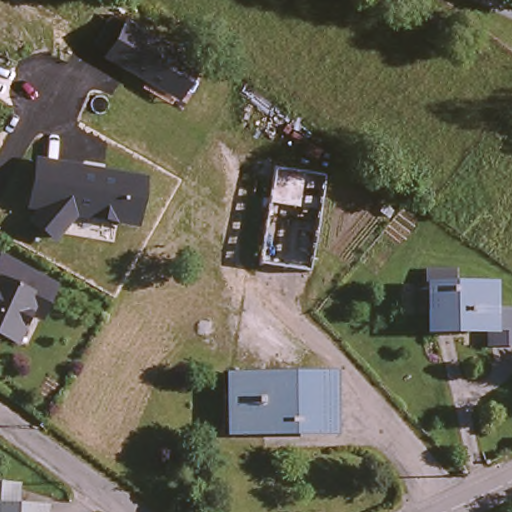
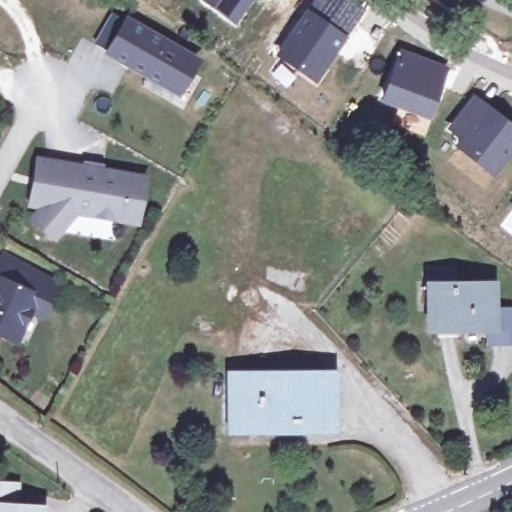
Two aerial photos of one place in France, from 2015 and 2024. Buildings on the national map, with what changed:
new [(236,26),(200,0),(253,0),(236,26)]
new [(310,0),(350,0),(364,9),(346,35),(306,6),(310,0)]
new [(306,6),(346,35),(313,81),(275,55),(306,6)]
unchanged [(115,17),(185,58),(167,89),(97,48),(115,17)]
new [(399,47),(450,66),(430,120),(379,102),(399,47)]
new [(512,123),(512,150),(493,178),(453,145),(456,141),(445,131),(473,93),(512,123)]
unchanged [(41,156),(144,175),(137,218),(78,207),(55,232),(35,214),(46,202),(34,199),(41,156)]
demolished [(282,159),(331,171),(308,269),(261,259),(282,159)]
new [(510,212),(512,208),(512,213),(510,212)]
unchanged [(52,290),(43,308),(32,303),(13,346),(0,340),(0,261),(52,290)]
unchanged [(428,320),(433,282),(492,286),(490,312),(512,314),(512,344),(484,342),(484,331),(484,325),(428,320)]
unchanged [(234,366),(333,368),(330,433),(307,433),(307,425),(231,423),(234,366)]
unchanged [(26,478),(26,499),(50,502),(50,512),(0,512),(0,477),(26,478)]

